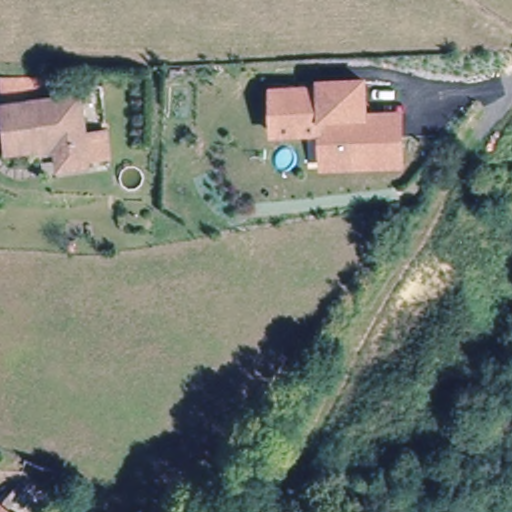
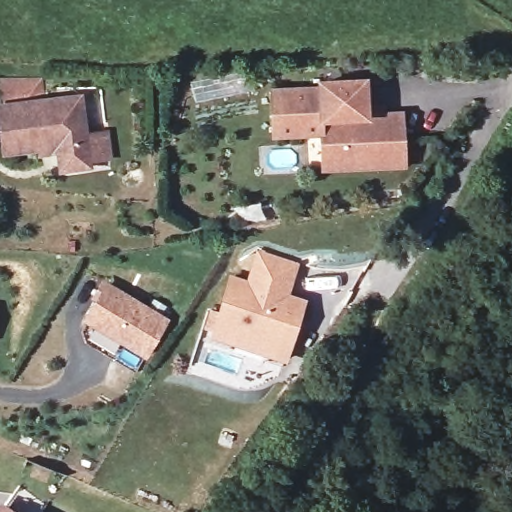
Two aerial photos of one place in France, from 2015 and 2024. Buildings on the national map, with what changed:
unchanged [(320,137),(271,139),(270,87),(317,86),(317,80),(368,78),(369,115),(403,113),(406,169),(320,173),(320,137)]
unchanged [(80,97),(87,163),(57,166),(56,142),(52,100),(80,97)]
unchanged [(56,142),(4,147),(1,106),(52,100),(56,142)]
new [(212,338),(230,280),(250,286),(258,257),(293,268),(285,297),(303,302),(298,319),(285,361),(265,355),(233,344),(212,338)]
new [(81,321),(92,300),(90,299),(102,279),(171,319),(146,359),(81,321)]
unchanged [(0,502),(7,492),(31,512),(1,512),(0,511),(0,502)]
unchanged [(0,511),(1,512),(0,512),(0,511)]

